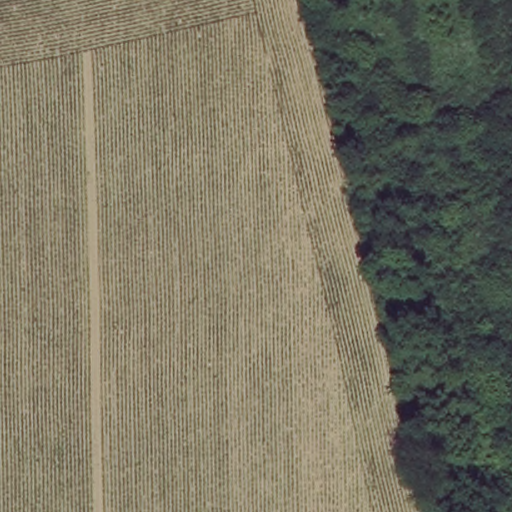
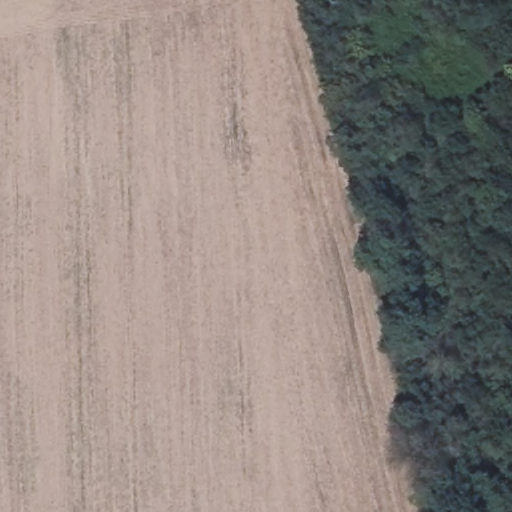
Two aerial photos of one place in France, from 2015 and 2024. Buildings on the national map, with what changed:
[]

